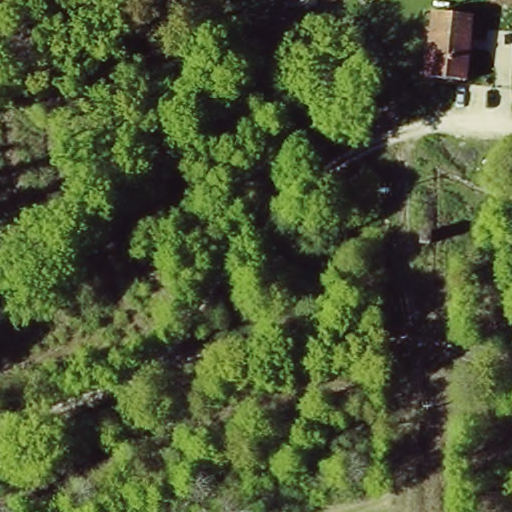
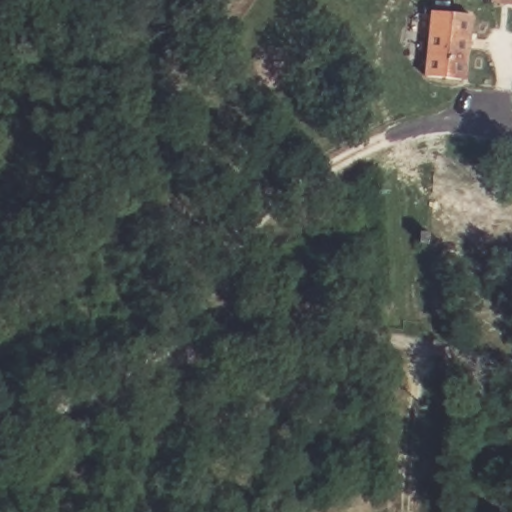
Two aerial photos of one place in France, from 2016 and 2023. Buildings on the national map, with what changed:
unchanged [(512,0),(512,5),(492,4),(492,0),(512,0)]
unchanged [(430,15),(472,14),(473,79),(430,79),(430,15)]
unchanged [(413,232),(438,233),(437,251),(412,251),(413,232)]

